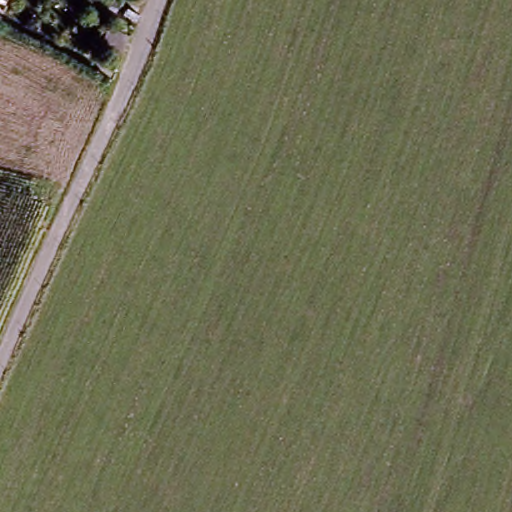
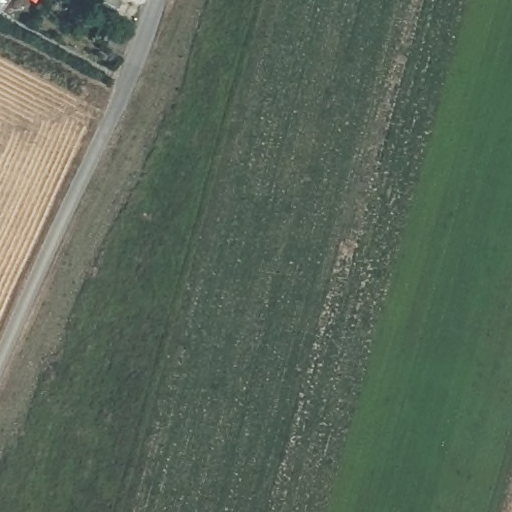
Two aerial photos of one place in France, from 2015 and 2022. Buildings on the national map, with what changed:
unchanged [(112,20),(85,5),(88,0),(123,0),(112,20)]

